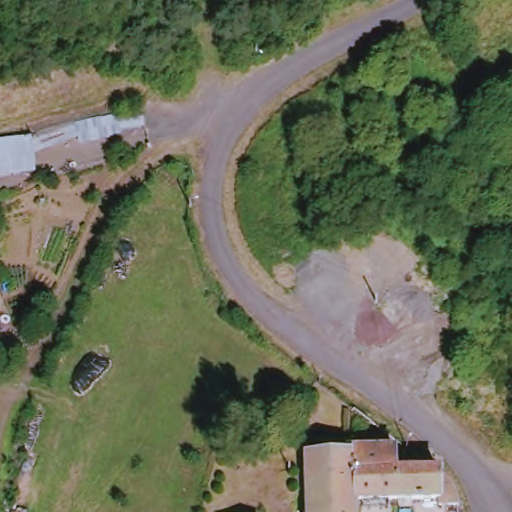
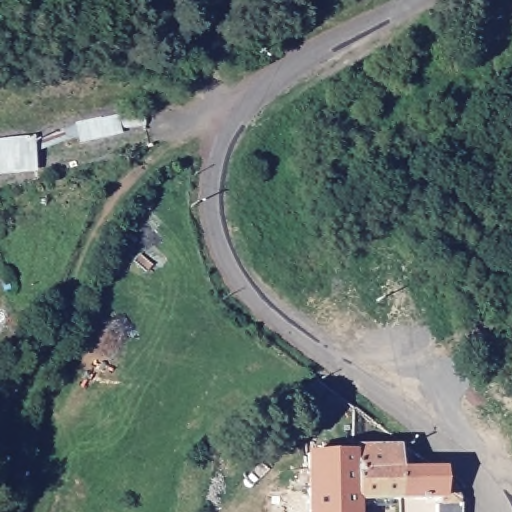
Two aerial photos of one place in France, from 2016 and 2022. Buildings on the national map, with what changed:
unchanged [(0,145),(27,145),(70,127),(69,121),(110,112),(112,118),(138,112),(142,126),(77,145),(73,138),(34,152),(35,171),(0,171),(0,145)]
unchanged [(351,453),(351,445),(387,446),(392,449),(392,469),(387,468),(390,496),(351,496),(351,453)]
unchanged [(387,468),(392,469),(405,472),(407,451),(430,469),(430,473),(449,491),(450,503),(431,502),(431,497),(390,496),(387,468)]
unchanged [(351,453),(351,496),(350,510),(301,509),(300,456),(351,453)]
unchanged [(350,512),(301,512),(301,509),(350,510),(350,512)]

